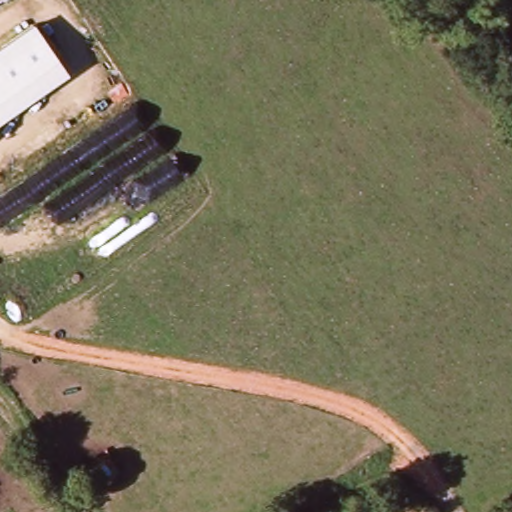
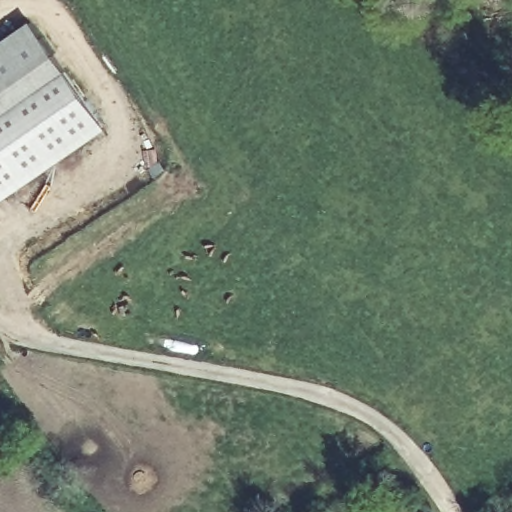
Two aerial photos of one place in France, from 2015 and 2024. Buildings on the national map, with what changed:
unchanged [(33,19),(67,70),(0,116),(0,41),(33,19)]
new [(67,70),(107,129),(0,202),(0,116),(67,70)]

